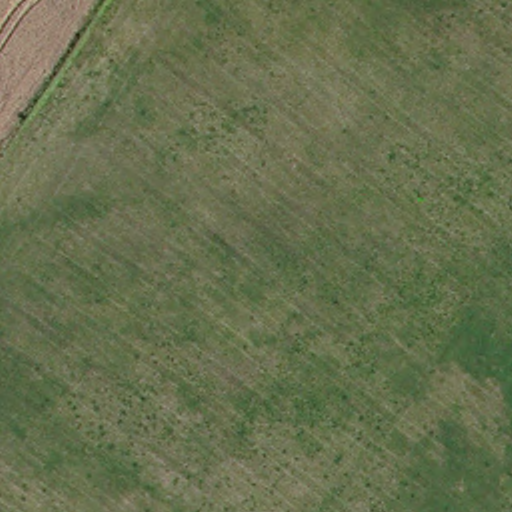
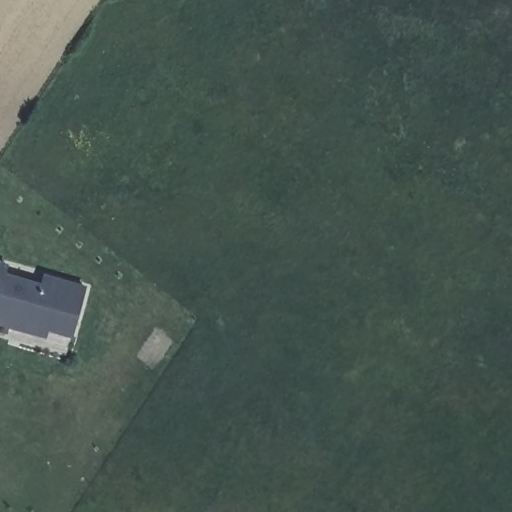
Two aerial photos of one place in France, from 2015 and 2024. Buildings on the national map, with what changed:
new [(5,267),(2,275),(43,288),(45,277),(83,288),(70,335),(45,329),(44,336),(0,323),(0,265),(5,267)]

